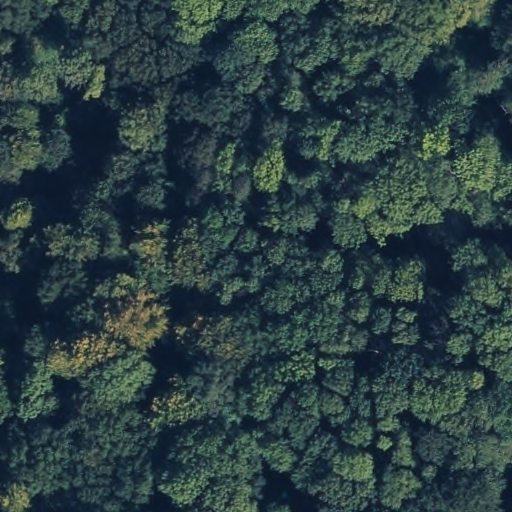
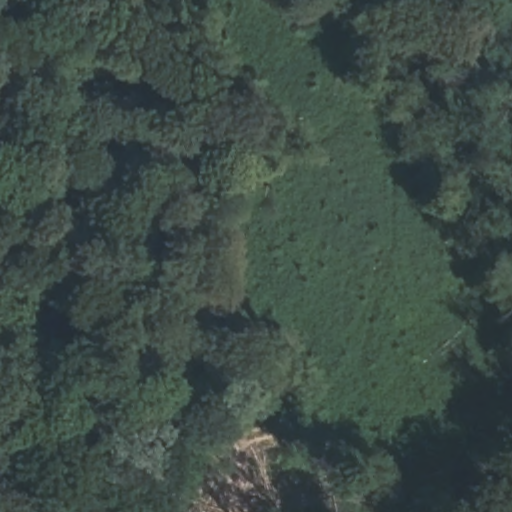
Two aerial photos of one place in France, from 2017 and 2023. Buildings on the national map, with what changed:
[]

